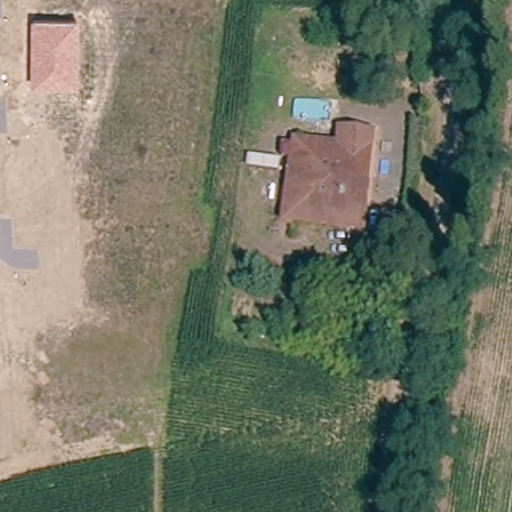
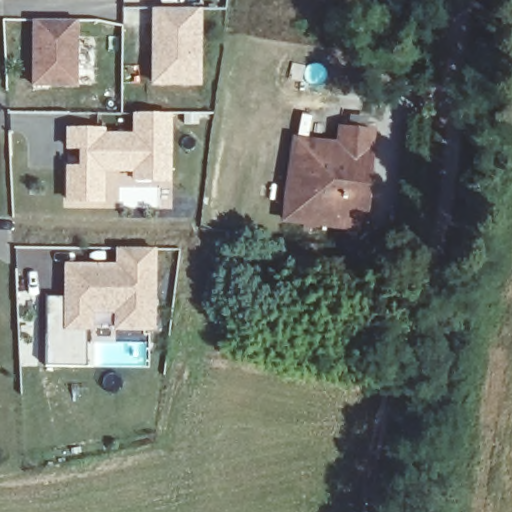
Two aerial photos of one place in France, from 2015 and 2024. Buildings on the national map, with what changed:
new [(152,86),(152,9),(202,10),(202,86),(152,86)]
unchanged [(32,21),(79,21),(77,88),(32,89),(32,21)]
new [(105,129),(105,134),(132,134),(132,116),(172,116),(172,183),(132,184),(132,174),(104,175),(104,206),(65,205),(65,167),(77,167),(78,153),(66,153),(66,128),(105,129)]
unchanged [(340,146),(342,129),(374,133),(362,229),(286,218),(296,141),(340,146)]
new [(115,264),(116,248),(157,250),(155,333),(112,333),(113,315),(94,315),(93,334),(87,333),(86,369),(48,366),(49,331),(62,332),(63,265),(115,264)]

